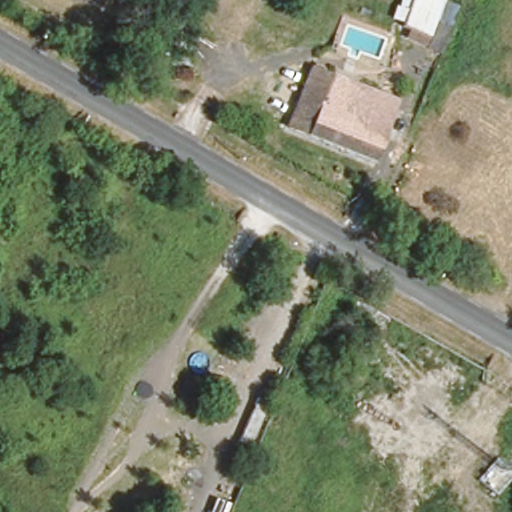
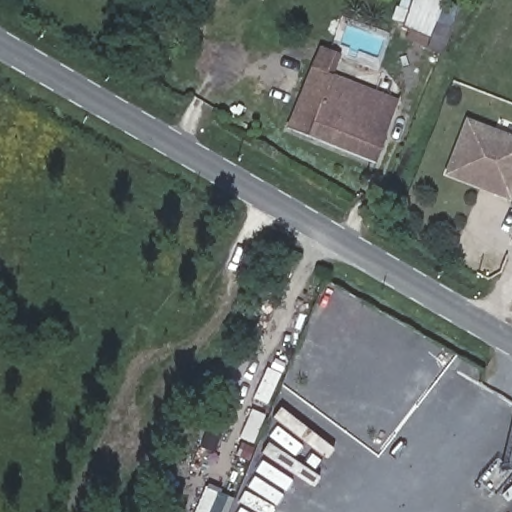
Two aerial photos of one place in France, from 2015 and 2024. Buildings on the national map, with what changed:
unchanged [(445,2),(457,6),(441,53),(426,47),(429,37),(401,25),(409,0),(445,0),(445,2)]
unchanged [(293,125),(317,67),(387,96),(393,81),(405,86),(399,101),(375,160),(293,125)]
new [(444,174),(466,118),(512,136),(512,197),(511,200),(444,174)]

